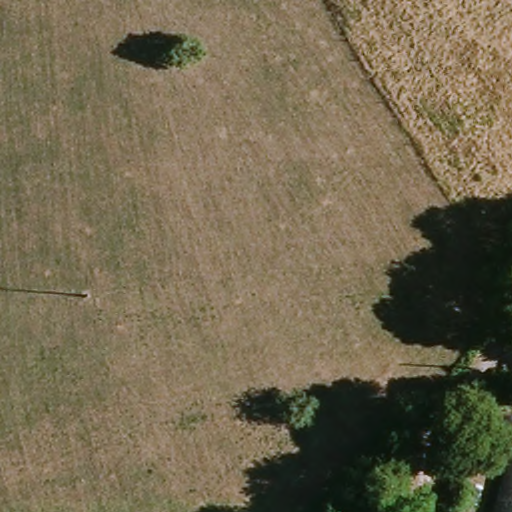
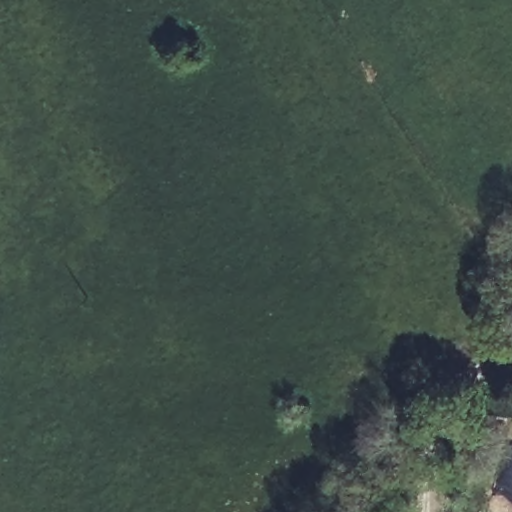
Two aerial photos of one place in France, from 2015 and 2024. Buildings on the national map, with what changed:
unchanged [(512,446),(512,512),(491,512),(512,446)]

